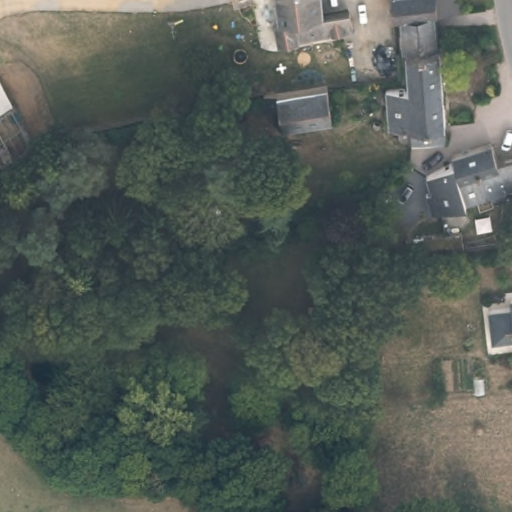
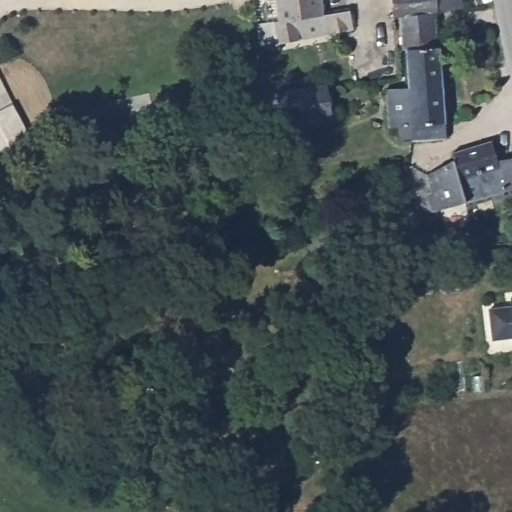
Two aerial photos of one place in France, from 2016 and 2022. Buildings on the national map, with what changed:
unchanged [(278,20),(277,0),(325,0),(327,14),(287,19),(278,20)]
unchanged [(392,0),(461,0),(462,5),(432,9),(434,25),(436,45),(406,47),(403,14),(394,15),(392,0)]
unchanged [(265,40),(262,22),(278,20),(287,19),(327,14),(355,10),(358,28),(265,40)]
unchanged [(440,81),(409,85),(406,47),(436,45),(437,56),(440,81)]
unchanged [(226,95),(221,75),(272,66),(274,86),(226,95)]
unchanged [(412,138),(411,130),(399,131),(398,120),(391,121),(387,86),(399,85),(409,85),(440,81),(445,135),(412,138)]
unchanged [(280,127),(278,110),(265,111),(263,95),(325,87),(329,122),(280,127)]
unchanged [(496,203),(492,189),(477,194),(478,196),(431,210),(424,190),(431,187),(426,170),(456,161),(453,151),(491,140),(497,159),(512,155),(512,198),(496,203)]
unchanged [(420,253),(420,236),(475,231),(476,248),(420,253)]
unchanged [(498,339),(495,307),(512,305),(511,297),(512,297),(512,337),(498,339)]

